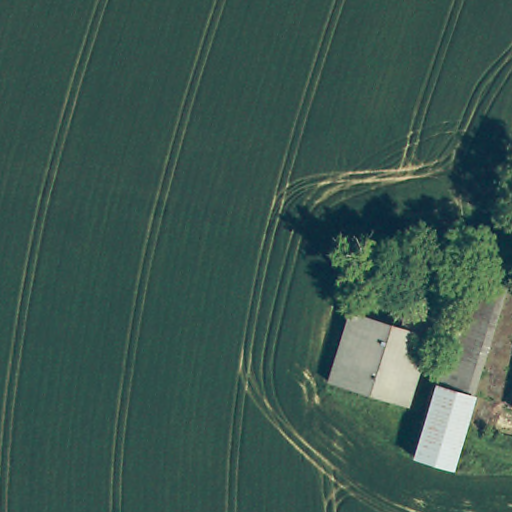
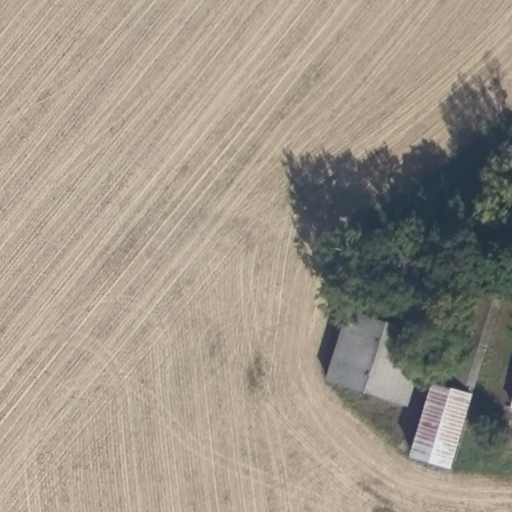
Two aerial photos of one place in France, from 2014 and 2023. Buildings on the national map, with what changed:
unchanged [(421,338),(401,404),(323,380),(343,314),(421,338)]
unchanged [(467,393),(447,465),(408,455),(426,382),(459,391),(467,393)]

